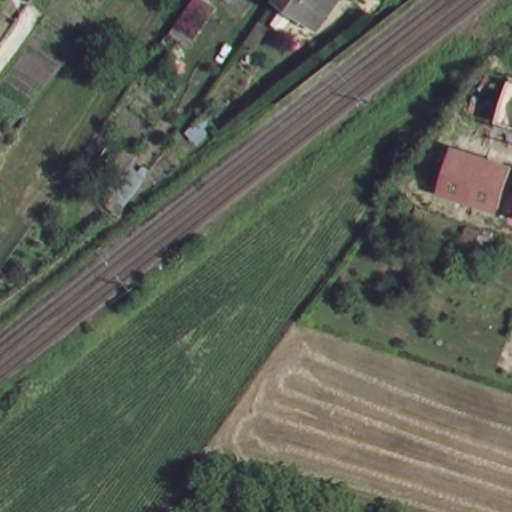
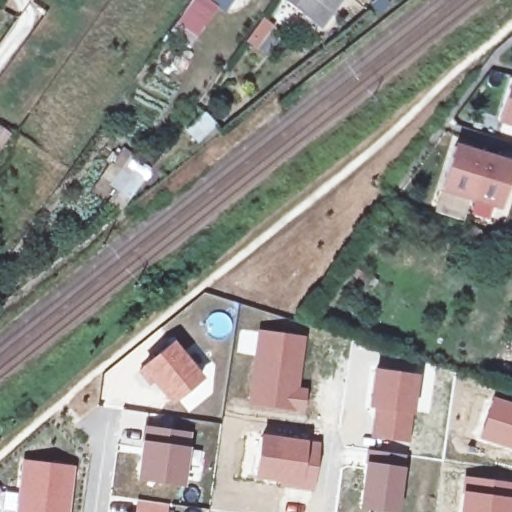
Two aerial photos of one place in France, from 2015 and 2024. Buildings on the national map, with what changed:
unchanged [(316,22),(293,6),(284,0),(332,0),(316,22)]
unchanged [(205,20),(193,36),(176,25),(188,9),(205,20)]
unchanged [(511,79),(512,79),(512,124),(498,120),(511,79)]
unchanged [(198,141),(186,126),(210,108),(220,124),(198,141)]
unchanged [(500,210),(440,191),(454,145),(512,162),(512,172),(500,210)]
new [(101,177),(125,146),(142,160),(146,179),(121,210),(108,200),(117,190),(101,177)]
new [(512,329),(512,332),(511,331),(512,329)]
new [(255,330),(306,335),(300,386),(308,387),(305,414),(245,406),(255,330)]
new [(171,339),(203,377),(168,405),(136,371),(171,339)]
new [(371,367),(418,373),(410,443),(369,437),(372,410),(366,408),(371,367)]
new [(492,396),(512,403),(512,450),(478,440),(492,396)]
new [(143,425),(191,430),(182,485),(136,480),(143,425)]
new [(259,433),(321,441),(313,491),(253,480),(259,433)]
new [(406,453),(397,512),(379,512),(358,510),(368,450),(406,453)]
new [(18,492),(22,459),(75,465),(69,512),(15,512),(15,510),(1,509),(3,491),(18,492)]
new [(512,481),(512,512),(459,512),(464,475),(512,481)]
new [(168,504),(167,512),(134,512),(136,500),(168,504)]

